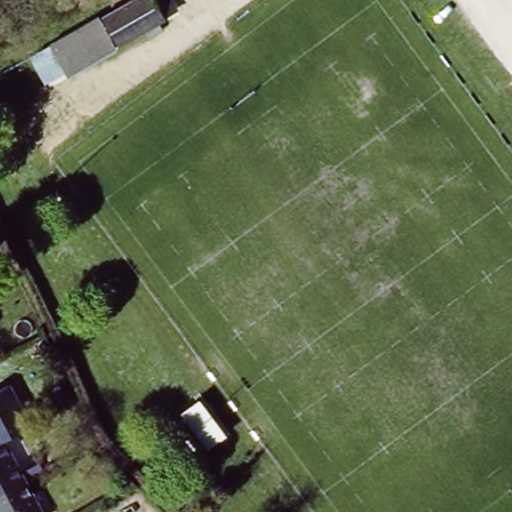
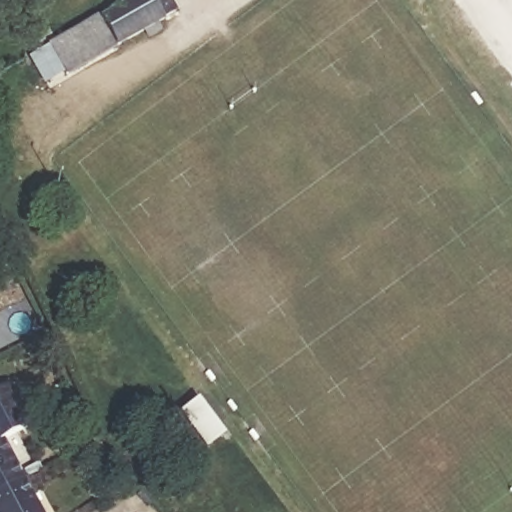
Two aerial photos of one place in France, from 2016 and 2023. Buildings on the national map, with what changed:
unchanged [(102,20),(136,0),(168,0),(175,12),(117,46),(102,20)]
unchanged [(112,49),(65,77),(48,48),(95,20),(112,49)]
unchanged [(0,440),(0,389),(8,384),(30,426),(2,439),(0,440)]
unchanged [(227,436),(207,450),(180,416),(200,401),(227,436)]
unchanged [(2,439),(23,480),(0,491),(0,440),(2,439)]
unchanged [(0,512),(0,491),(23,480),(41,512),(0,512)]

